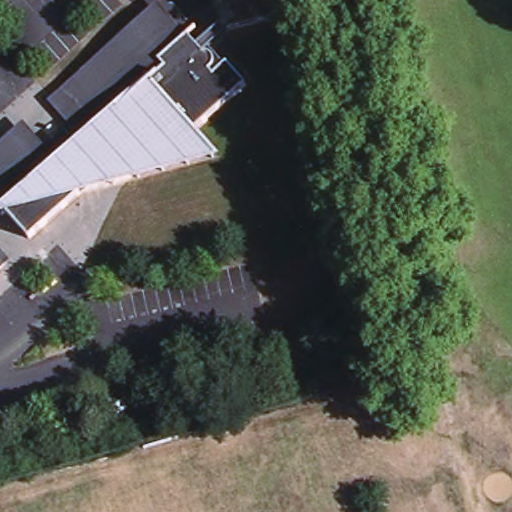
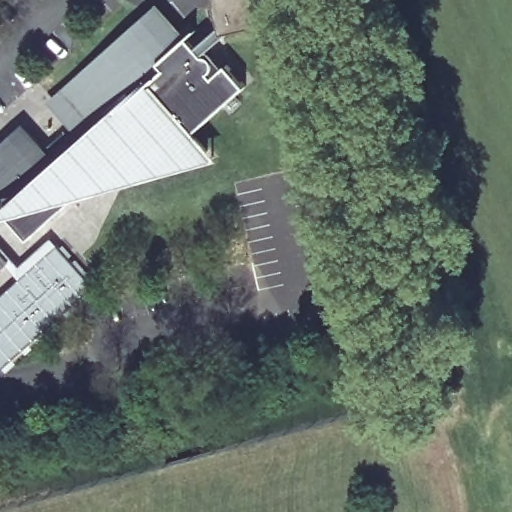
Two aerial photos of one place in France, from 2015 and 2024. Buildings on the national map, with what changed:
unchanged [(226,35),(222,16),(216,18),(214,10),(220,9),(218,0),(274,0),(280,21),(226,35)]
unchanged [(34,123),(60,152),(91,124),(65,94),(165,3),(192,32),(197,27),(213,45),(222,48),(224,54),(221,64),(224,66),(237,54),(257,76),(203,124),(219,141),(224,148),(126,177),(123,169),(119,159),(41,232),(17,206),(13,202),(0,213),(0,154),(34,123)]
new [(9,287),(38,258),(34,252),(51,237),(96,284),(70,310),(2,369),(0,366),(0,295),(9,287)]
unchanged [(16,260),(0,275),(0,242),(16,260)]

